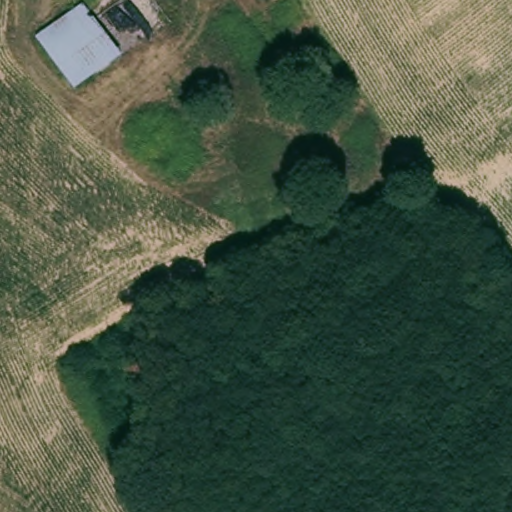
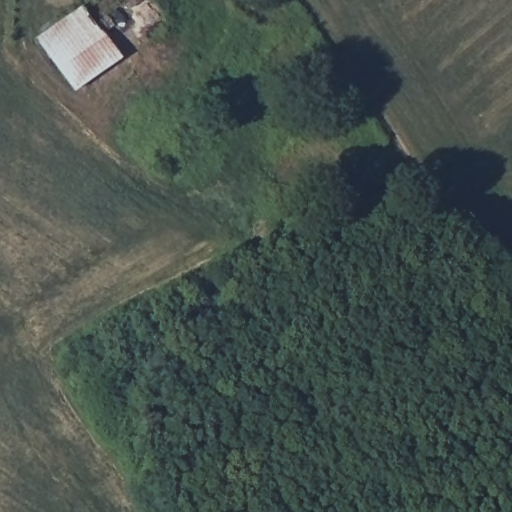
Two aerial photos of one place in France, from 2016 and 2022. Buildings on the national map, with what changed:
unchanged [(83,0),(97,19),(122,53),(76,86),(37,33),(83,0)]

